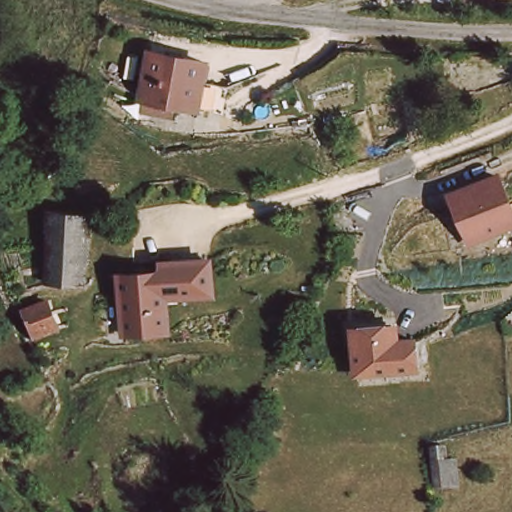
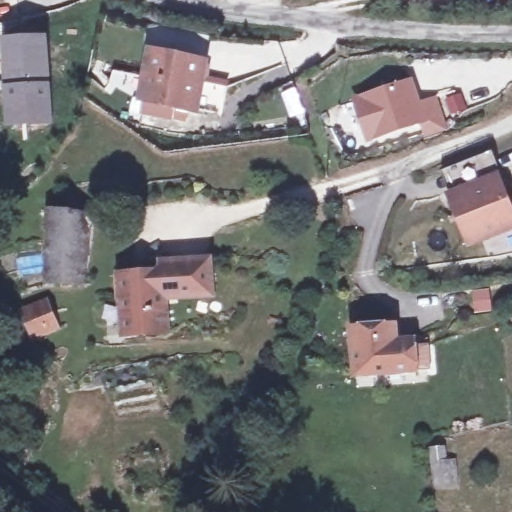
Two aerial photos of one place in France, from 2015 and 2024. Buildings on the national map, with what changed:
new [(54,124),(3,127),(0,51),(0,38),(48,34),(54,124)]
unchanged [(167,119),(140,112),(143,94),(140,94),(151,46),(209,60),(204,82),(225,86),(220,112),(197,107),(175,101),(172,112),(167,119)]
new [(413,77),(421,101),(437,95),(448,131),(426,138),(421,125),(366,144),(351,100),(413,77)]
new [(492,150),(501,174),(499,175),(450,191),(442,171),(492,150)]
unchanged [(512,205),(512,226),(466,244),(442,194),(499,175),(512,205)]
unchanged [(85,280),(46,276),(50,209),(90,212),(85,280)]
unchanged [(122,272),(164,272),(163,263),(178,262),(211,262),(212,295),(179,296),(178,292),(165,292),(166,328),(123,330),(122,272)]
unchanged [(55,329),(33,340),(21,312),(45,303),(55,329)]
unchanged [(403,336),(415,338),(418,375),(355,380),(346,326),(400,318),(403,336)]

